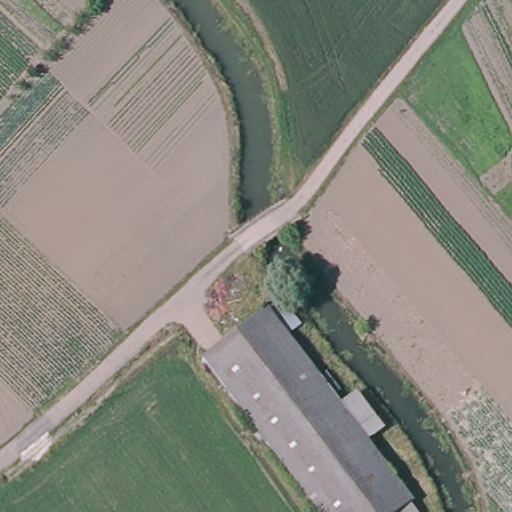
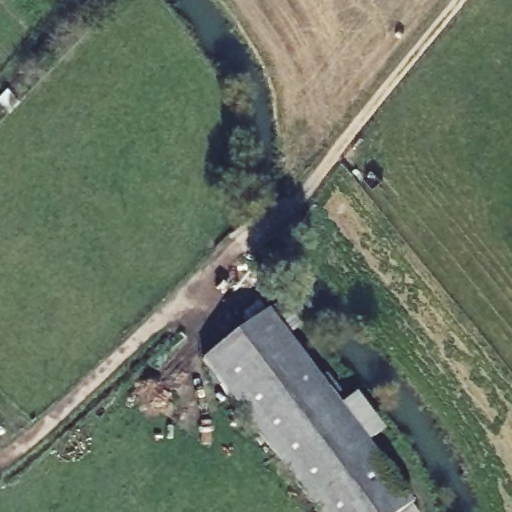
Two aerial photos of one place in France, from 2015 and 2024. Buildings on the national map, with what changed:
unchanged [(313,512),(202,367),(270,317),(324,389),(332,383),(347,402),(339,409),(415,510),(413,512),(313,512)]

